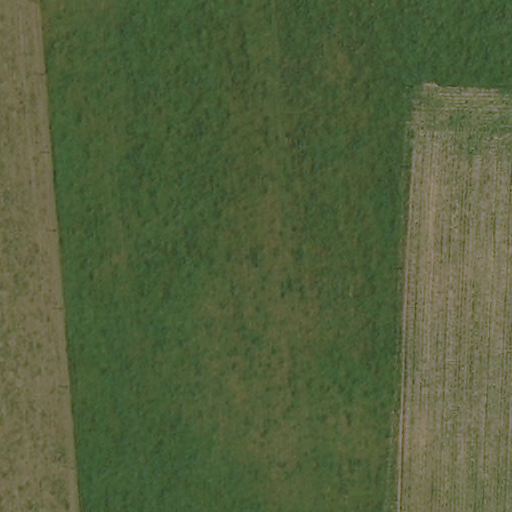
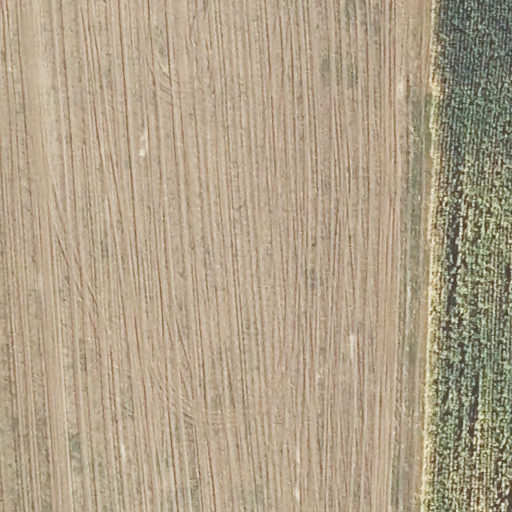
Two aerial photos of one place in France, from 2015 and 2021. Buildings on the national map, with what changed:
[]

